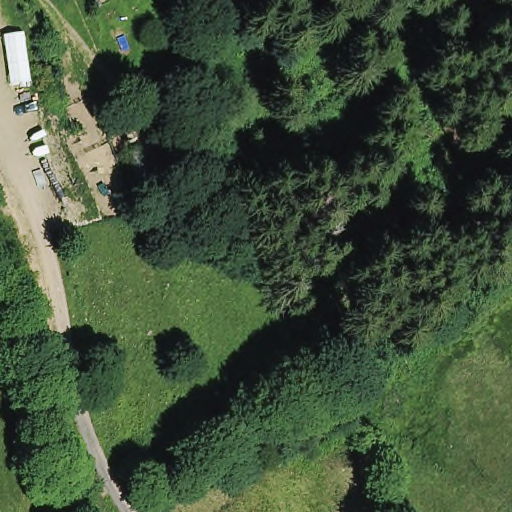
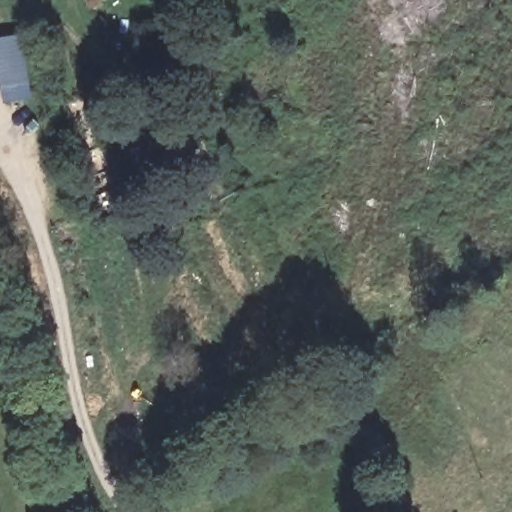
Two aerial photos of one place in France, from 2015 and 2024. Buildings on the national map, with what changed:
new [(30,85),(3,89),(0,64),(0,38),(24,35),(30,85)]

